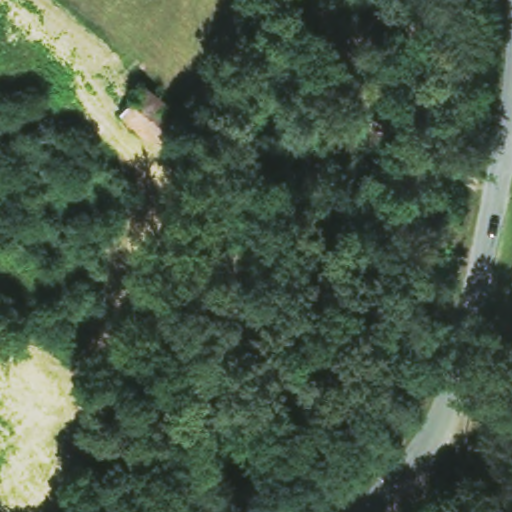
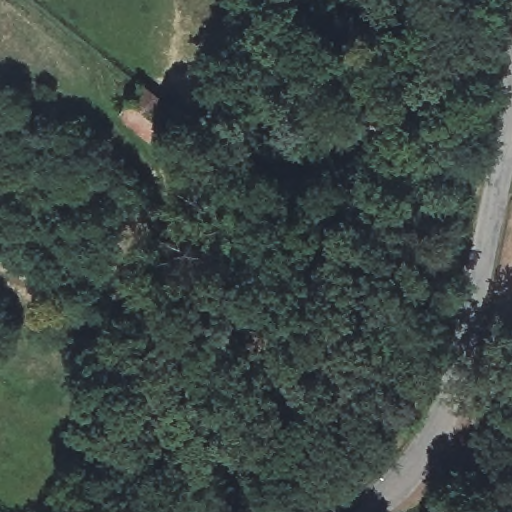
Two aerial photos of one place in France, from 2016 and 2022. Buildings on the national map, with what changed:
unchanged [(138,79),(177,107),(156,137),(117,111),(138,79)]

